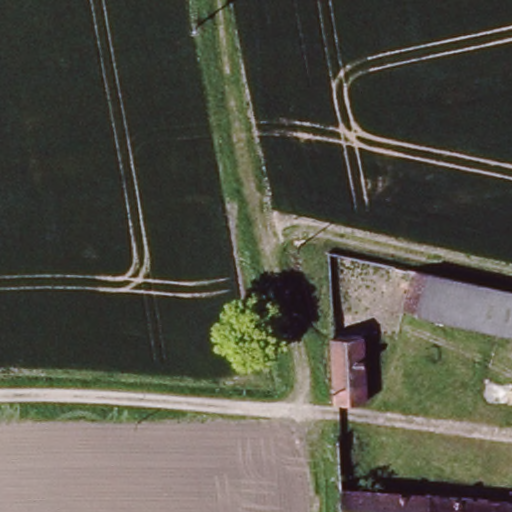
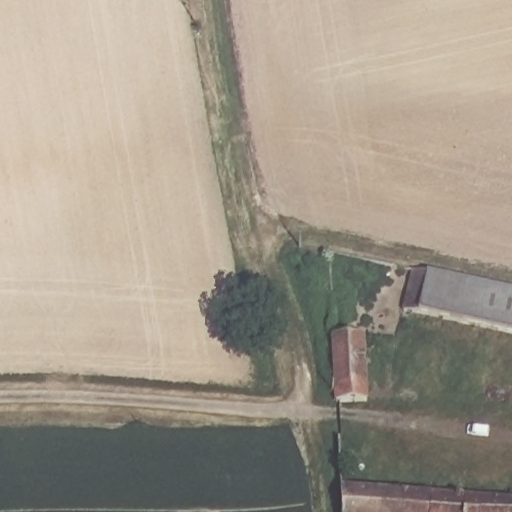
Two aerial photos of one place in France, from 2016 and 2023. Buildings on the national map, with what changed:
unchanged [(512,327),(409,303),(417,262),(512,283),(512,327)]
unchanged [(369,333),(371,396),(339,395),(338,332),(369,333)]
unchanged [(439,512),(349,512),(348,485),(441,491),(439,512)]
unchanged [(512,512),(439,512),(441,491),(512,495),(512,512)]

